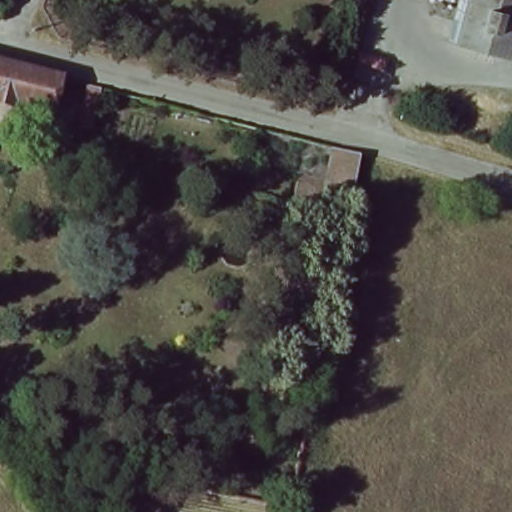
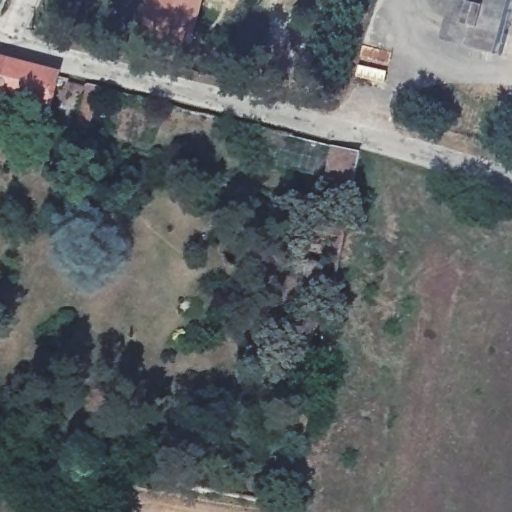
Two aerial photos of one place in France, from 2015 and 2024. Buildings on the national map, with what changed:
unchanged [(1,16),(0,16),(0,0),(9,0),(11,1),(4,18),(1,16)]
new [(204,0),(201,11),(191,46),(131,28),(138,0),(204,0)]
unchanged [(455,42),(466,0),(512,0),(512,36),(507,57),(455,42)]
unchanged [(0,101),(0,61),(57,75),(48,113),(0,101)]
unchanged [(319,195),(328,150),(357,158),(349,200),(319,195)]
unchanged [(270,354),(286,263),(336,271),(319,363),(270,354)]

